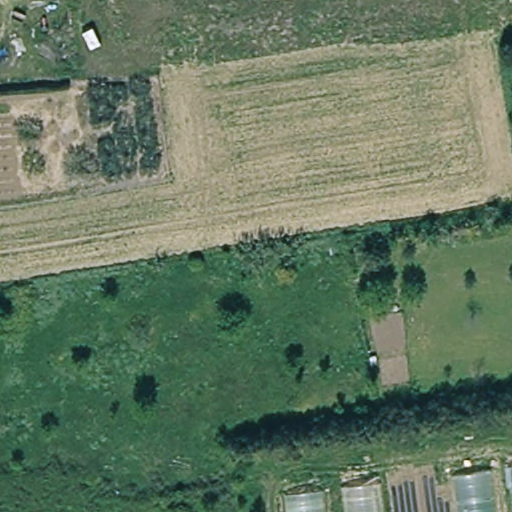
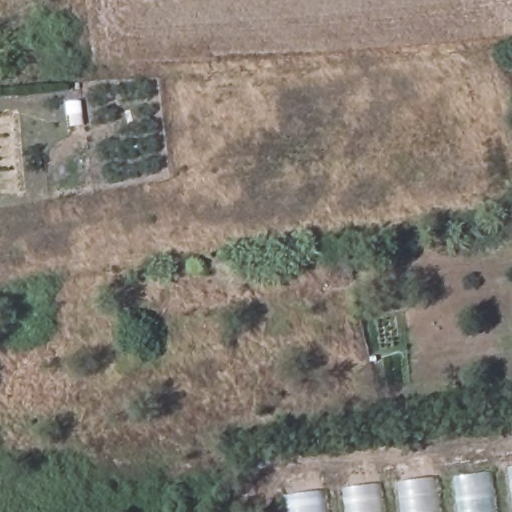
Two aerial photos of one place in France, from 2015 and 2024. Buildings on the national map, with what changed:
unchanged [(458,512),(454,476),(492,471),(498,512),(458,512)]
new [(441,512),(404,512),(400,482),(437,478),(441,512)]
unchanged [(380,480),(384,512),(288,512),(285,493),(380,480)]

